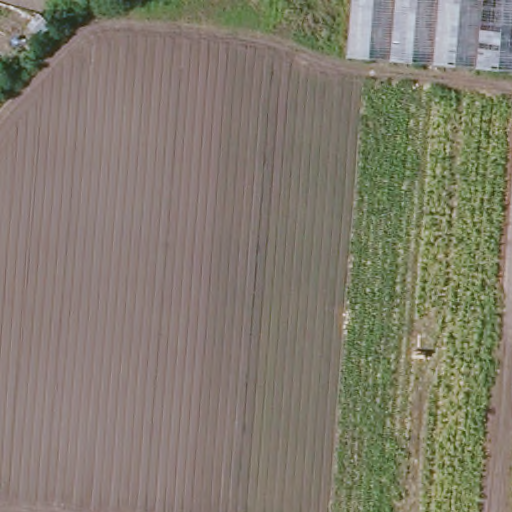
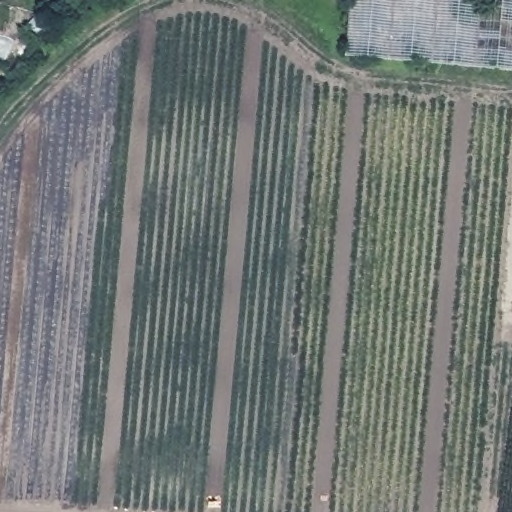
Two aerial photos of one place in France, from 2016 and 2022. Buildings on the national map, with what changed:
unchanged [(346,0),(512,0),(512,69),(341,55),(346,0)]

